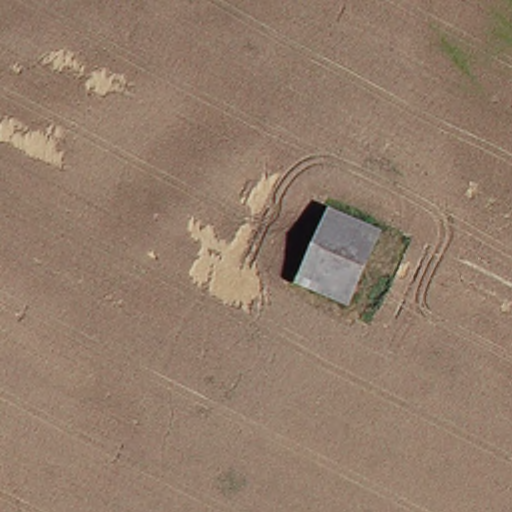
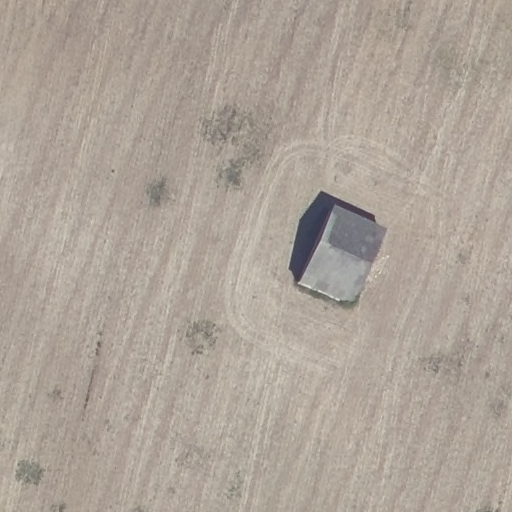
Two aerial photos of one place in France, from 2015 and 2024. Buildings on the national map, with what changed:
unchanged [(334,306),(283,284),(314,210),(365,231),(334,306)]

